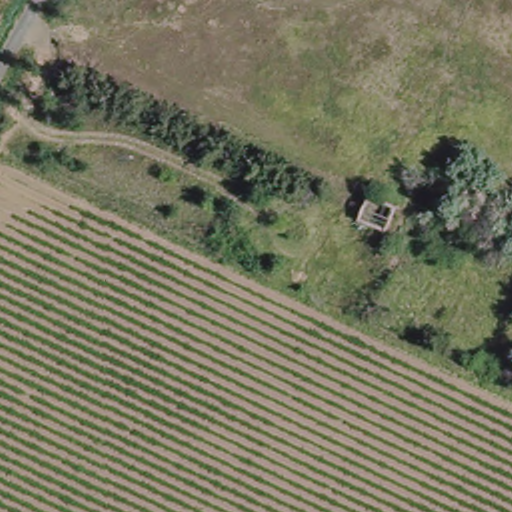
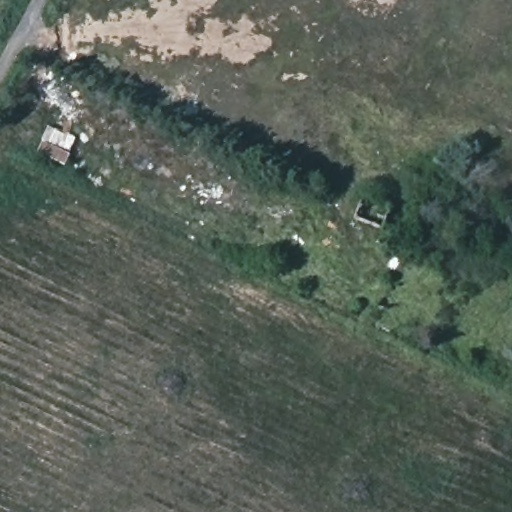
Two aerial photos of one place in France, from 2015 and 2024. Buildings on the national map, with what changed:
unchanged [(381,231),(356,218),(367,194),(393,206),(381,231)]

